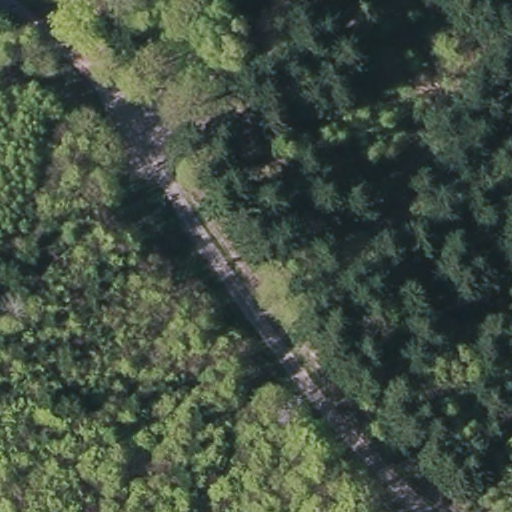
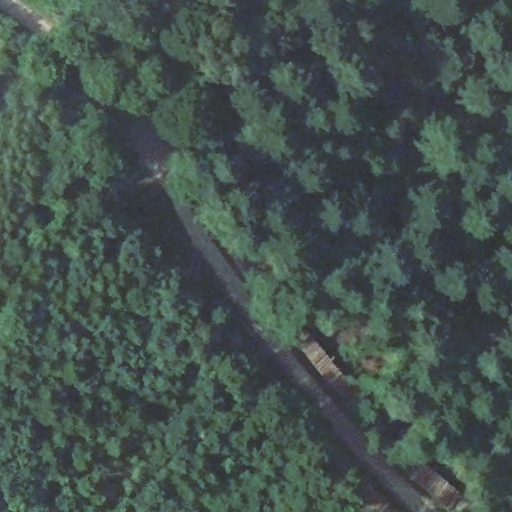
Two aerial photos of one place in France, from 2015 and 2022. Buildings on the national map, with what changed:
[]

